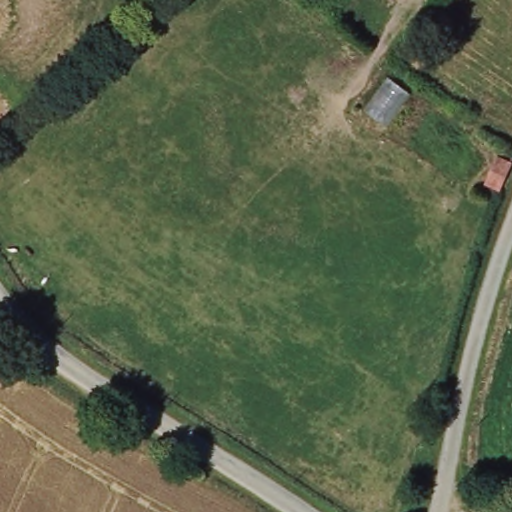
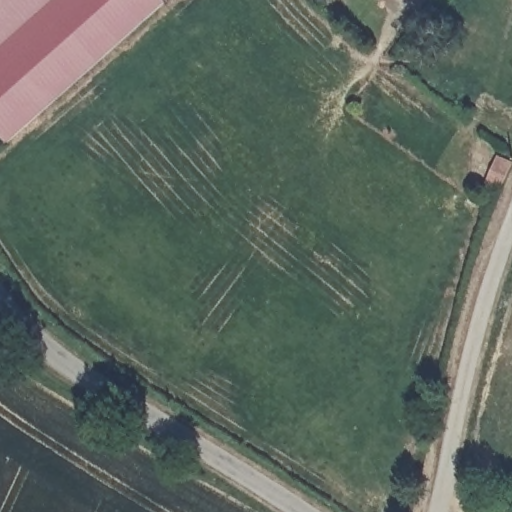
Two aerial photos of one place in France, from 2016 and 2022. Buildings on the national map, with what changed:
new [(0,136),(0,0),(163,0),(165,2),(6,144),(0,136)]
unchanged [(498,173),(488,202),(474,197),(483,169),(494,171),(498,173)]

